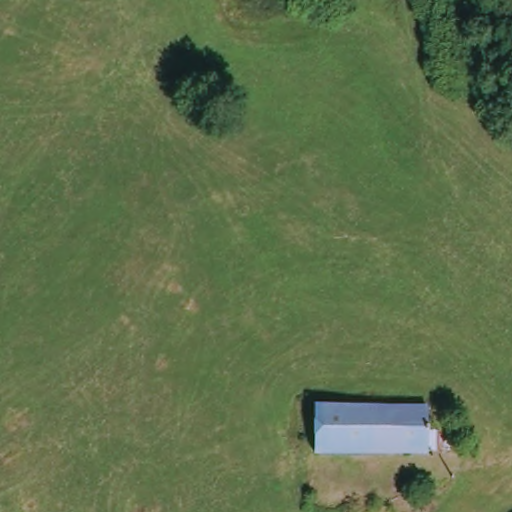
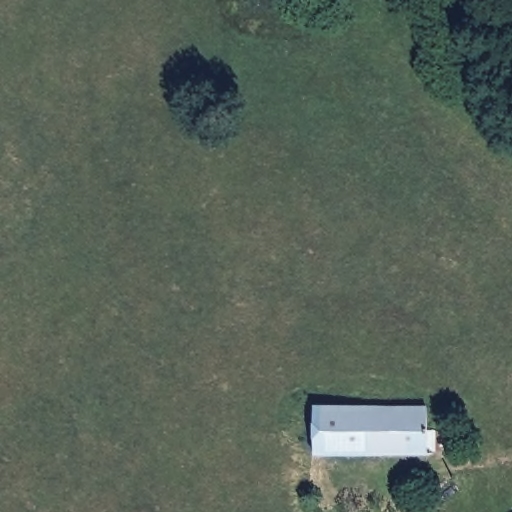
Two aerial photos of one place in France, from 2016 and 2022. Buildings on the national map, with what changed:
unchanged [(427,459),(326,458),(314,457),(316,409),(428,413),(427,459)]

